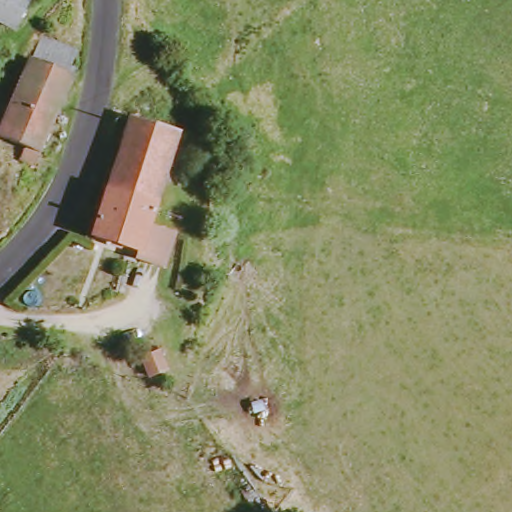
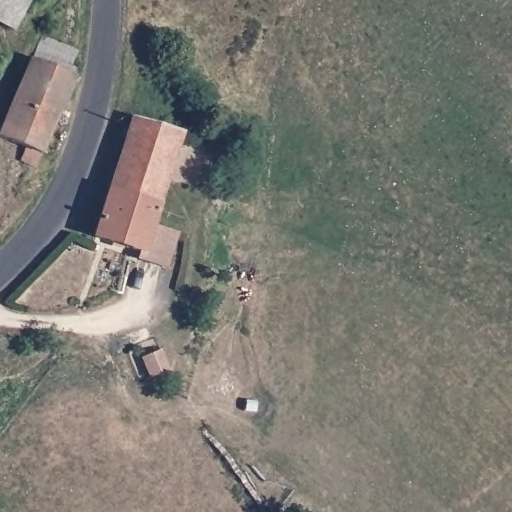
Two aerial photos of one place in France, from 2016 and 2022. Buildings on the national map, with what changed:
unchanged [(0,23),(0,0),(29,0),(14,30),(0,23)]
unchanged [(32,52),(79,71),(37,165),(22,156),(26,144),(0,132),(0,122),(32,52)]
unchanged [(129,115),(183,134),(156,220),(100,202),(129,115)]
unchanged [(156,220),(154,227),(175,235),(164,268),(125,256),(127,250),(89,236),(100,202),(156,220)]
unchanged [(157,351),(165,371),(148,378),(141,359),(157,351)]

